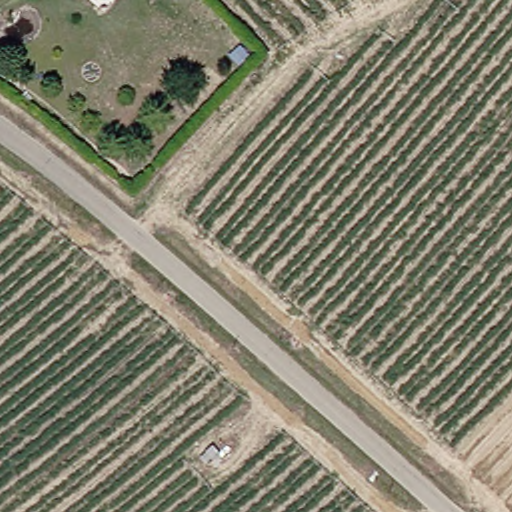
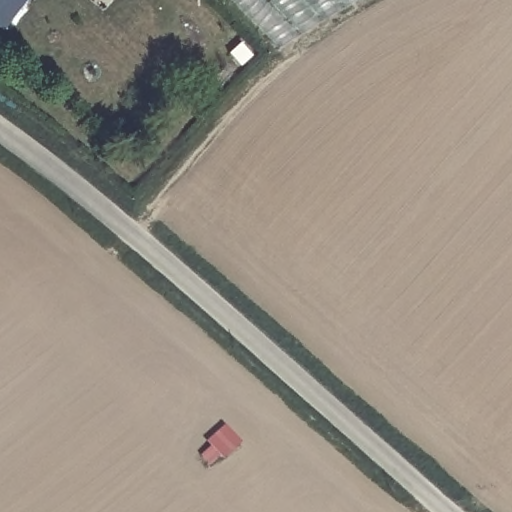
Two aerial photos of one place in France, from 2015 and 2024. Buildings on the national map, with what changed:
new [(0,27),(0,0),(28,0),(3,30),(0,27)]
unchanged [(88,0),(110,0),(101,14),(88,0)]
new [(97,0),(95,2),(94,0),(97,0)]
new [(357,0),(276,49),(229,0),(357,0)]

